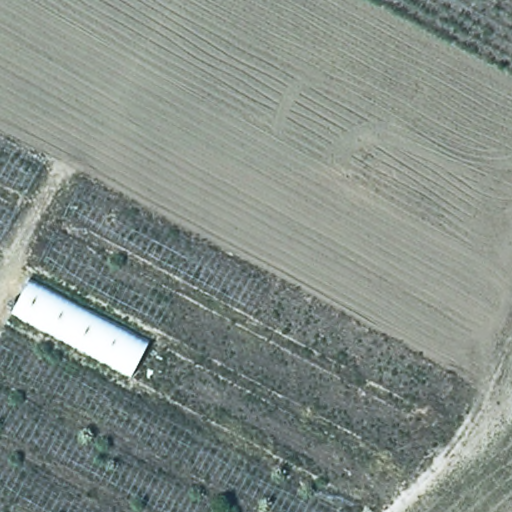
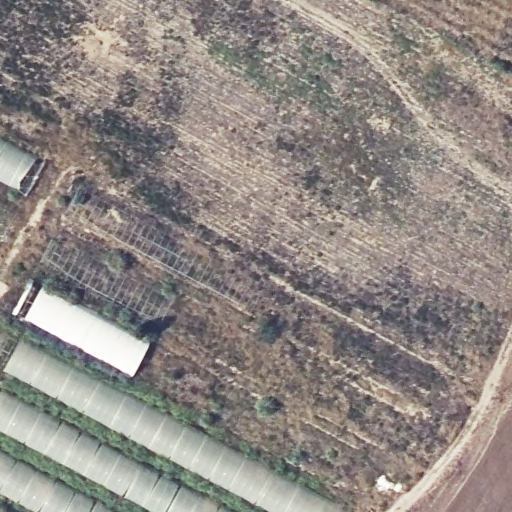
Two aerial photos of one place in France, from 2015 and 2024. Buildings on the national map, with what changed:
new [(43,161),(0,243),(0,138),(43,161)]
unchanged [(12,313),(30,282),(149,343),(130,377),(12,313)]
new [(347,512),(0,512),(0,333),(3,327),(348,510),(347,512)]

